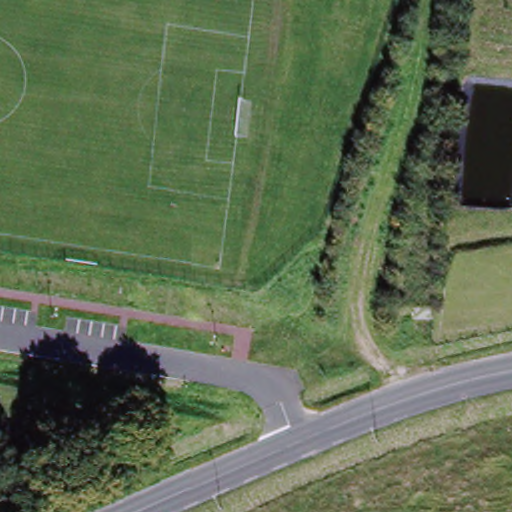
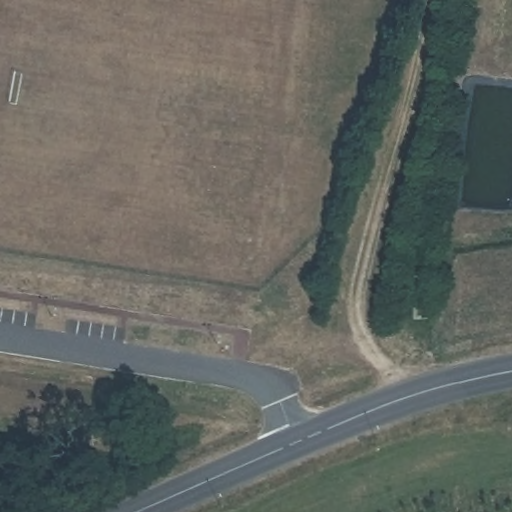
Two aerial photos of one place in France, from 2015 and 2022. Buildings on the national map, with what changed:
unchanged [(414,306),(412,316),(395,313),(397,303),(414,305),(414,306)]

